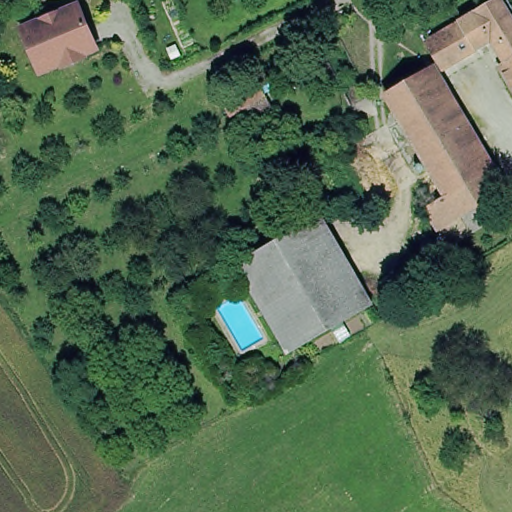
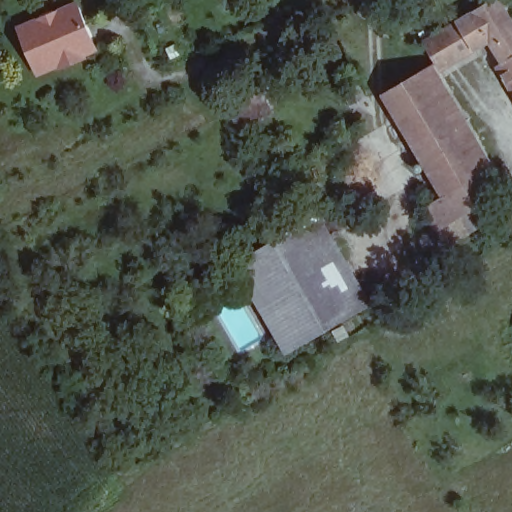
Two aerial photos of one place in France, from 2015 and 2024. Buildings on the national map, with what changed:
unchanged [(29,20),(52,10),(50,5),(61,0),(63,0),(63,2),(68,0),(90,0),(95,12),(94,12),(100,26),(104,36),(90,42),(92,47),(72,56),(70,51),(56,57),(52,50),(47,37),(38,41),(29,20)]
unchanged [(508,61),(495,38),(480,47),(460,59),(444,69),(428,43),(445,32),(465,21),(479,13),(478,11),(498,0),(503,0),(512,14),(512,82),(502,65),(508,61)]
unchanged [(262,84),(228,105),(218,87),(252,67),(262,84)]
unchanged [(390,93),(428,70),(477,152),(438,175),(390,93)]
unchanged [(477,152),(502,194),(442,230),(429,208),(450,195),(438,175),(477,152)]
unchanged [(503,203),(512,198),(512,217),(503,203)]
unchanged [(237,266),(302,227),(353,314),(287,353),(237,266)]

